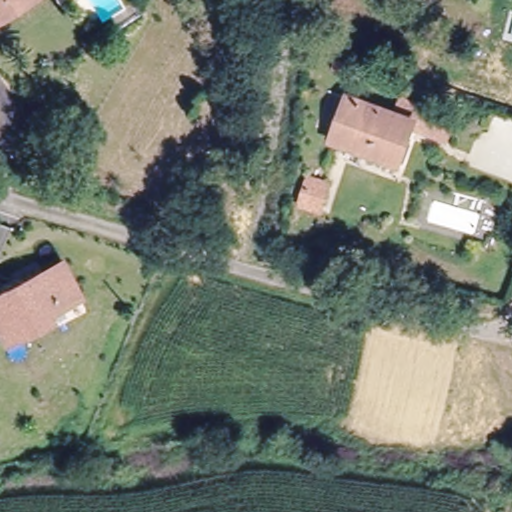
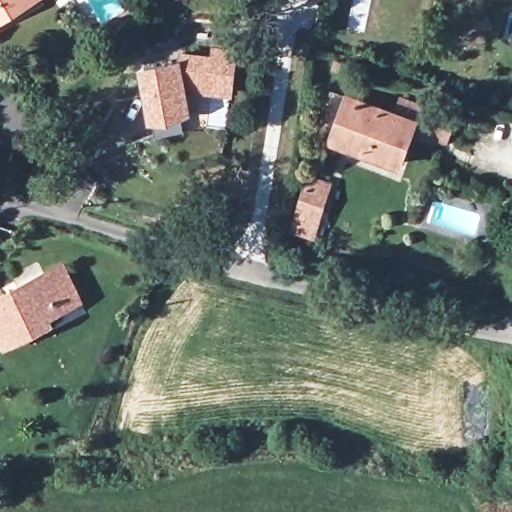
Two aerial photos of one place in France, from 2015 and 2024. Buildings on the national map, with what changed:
unchanged [(0,0),(29,0),(26,2),(0,18),(0,0)]
new [(140,67),(179,58),(180,50),(213,53),(214,45),(239,48),(235,96),(190,91),(194,110),(151,119),(140,67)]
unchanged [(386,113),(391,98),(443,116),(436,137),(402,126),(390,162),(324,140),(338,96),(386,113)]
unchanged [(331,185),(324,211),(305,206),(312,180),(331,185)]
unchanged [(6,343),(0,331),(0,296),(61,265),(79,298),(47,315),(50,320),(35,328),(6,343)]

